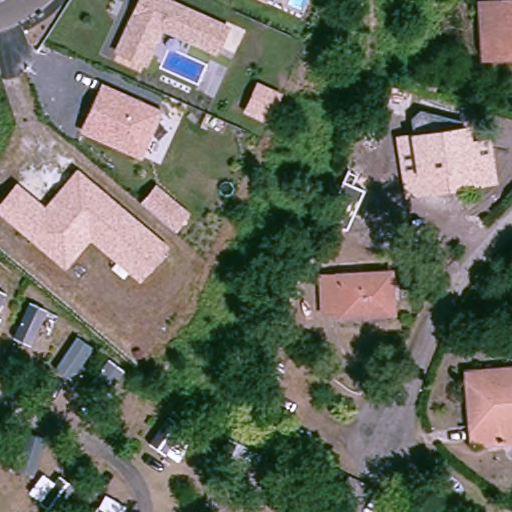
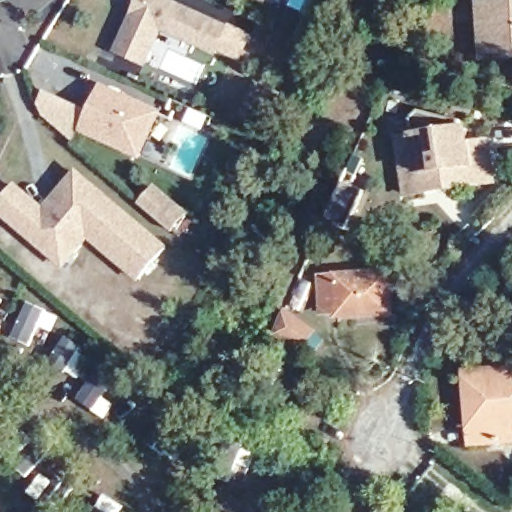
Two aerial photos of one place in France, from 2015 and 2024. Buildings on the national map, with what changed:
unchanged [(224,28),(213,52),(159,27),(143,63),(116,51),(139,0),(161,0),(224,28)]
unchanged [(512,46),(508,46),(508,53),(490,54),(487,2),(512,1),(512,46)]
unchanged [(284,93),(271,125),(244,113),(257,82),(284,93)]
unchanged [(91,113),(102,86),(159,112),(140,155),(83,130),(91,113)]
unchanged [(411,95),(405,117),(385,112),(391,90),(411,95)]
new [(45,91),(91,113),(83,130),(80,134),(76,144),(44,117),(38,105),(45,91)]
unchanged [(478,143),(497,140),(503,180),(478,184),(475,165),(430,172),(433,191),(418,193),(410,138),(476,128),(478,143)]
unchanged [(45,206),(77,169),(169,248),(139,283),(90,241),(64,271),(0,215),(0,204),(16,182),(45,206)]
unchanged [(357,176),(352,186),(364,191),(347,230),(324,220),(346,170),(357,176)]
unchanged [(155,189),(186,216),(173,232),(141,205),(155,189)]
unchanged [(395,269),(397,310),(343,313),(343,309),(328,309),(326,273),(395,269)]
unchanged [(4,289),(0,302),(0,287),(4,289)]
unchanged [(42,302),(27,340),(8,331),(22,294),(42,302)]
new [(284,312),(312,332),(296,353),(274,336),(284,312)]
unchanged [(86,345),(64,378),(50,366),(71,335),(86,345)]
unchanged [(117,368),(93,399),(79,385),(101,354),(117,368)]
unchanged [(508,432),(483,434),(477,374),(512,371),(512,420),(507,420),(508,432)]
unchanged [(162,405),(181,420),(158,452),(140,438),(162,405)]
unchanged [(15,428),(34,431),(29,468),(9,464),(15,428)]
unchanged [(238,448),(220,479),(204,469),(221,436),(238,448)]
unchanged [(49,460),(66,474),(46,503),(29,492),(49,460)]
unchanged [(112,512),(90,512),(100,489),(117,498),(112,512)]

